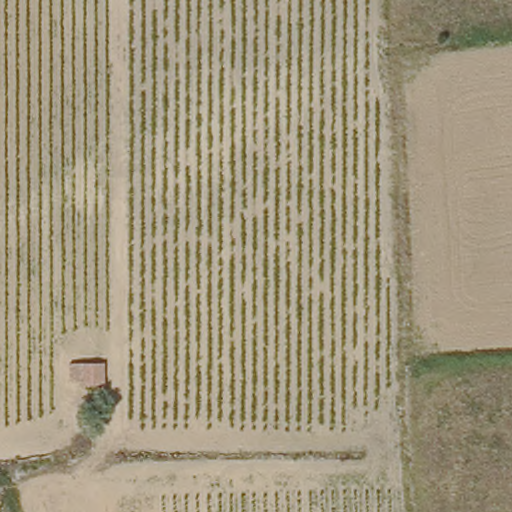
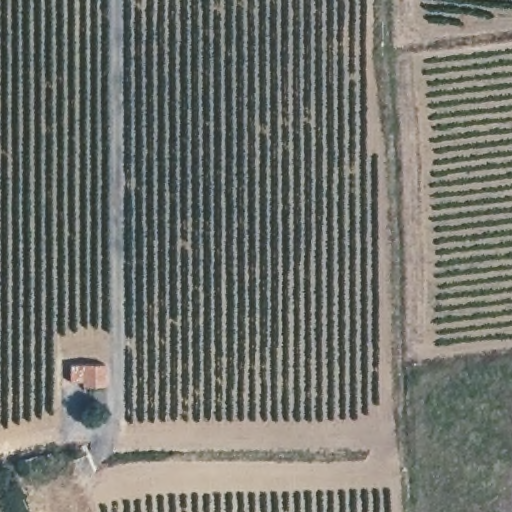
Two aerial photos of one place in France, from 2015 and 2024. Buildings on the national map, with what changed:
unchanged [(99,368),(100,391),(77,391),(77,387),(65,387),(64,369),(99,368)]

